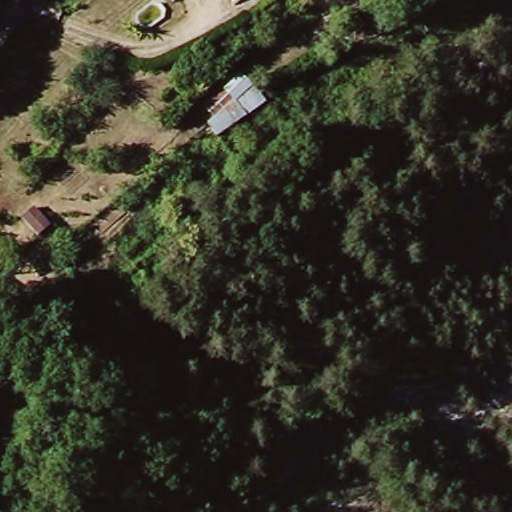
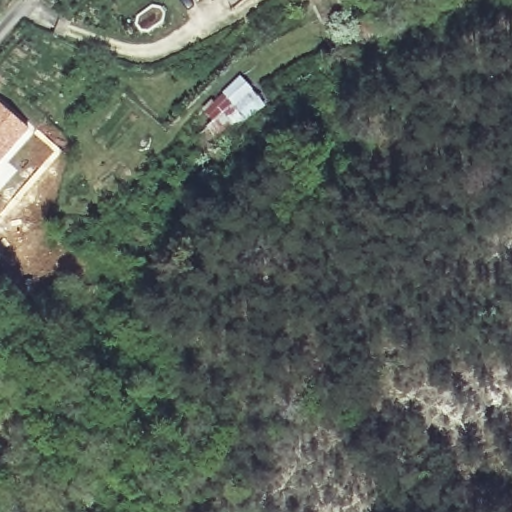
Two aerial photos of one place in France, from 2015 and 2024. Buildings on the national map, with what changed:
unchanged [(200,111),(240,76),(262,105),(217,138),(200,111)]
new [(0,160),(0,102),(30,128),(0,160)]
unchanged [(20,220),(32,210),(49,227),(35,239),(20,220)]

